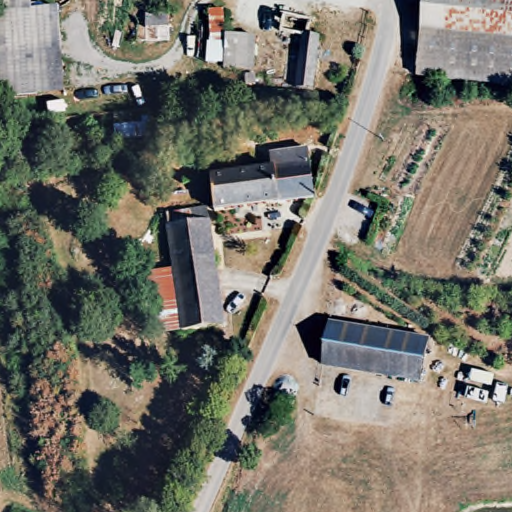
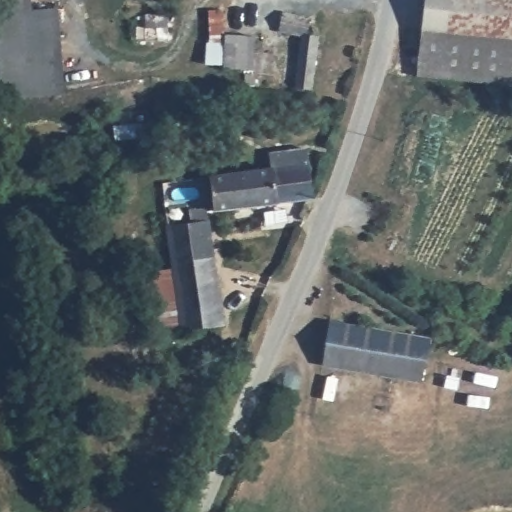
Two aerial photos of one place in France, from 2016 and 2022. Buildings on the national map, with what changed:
unchanged [(2,99),(0,82),(0,0),(31,0),(31,10),(58,11),(64,95),(2,99)]
unchanged [(506,85),(446,78),(414,74),(421,0),(512,0),(512,86),(506,85)]
unchanged [(257,32),(257,67),(228,68),(228,62),(200,63),(200,33),(213,33),(213,8),(227,8),(227,33),(257,32)]
unchanged [(309,23),(305,38),(317,40),(312,90),(293,88),(299,37),(279,33),(282,17),(309,23)]
unchanged [(259,86),(259,101),(249,101),(244,96),(244,90),(249,86),(259,86)]
unchanged [(277,173),(274,160),(304,156),(306,169),(310,191),(311,201),(215,218),(213,205),(210,184),(271,174),(277,173)]
unchanged [(193,225),(192,217),(208,215),(224,332),(180,337),(180,336),(178,314),(172,275),(165,229),(193,225)]
unchanged [(144,280),(172,275),(178,314),(180,336),(153,340),(149,315),(144,280)]
unchanged [(358,325),(386,329),(428,335),(427,346),(423,377),(395,373),(334,365),(323,363),(327,321),(358,325)]

